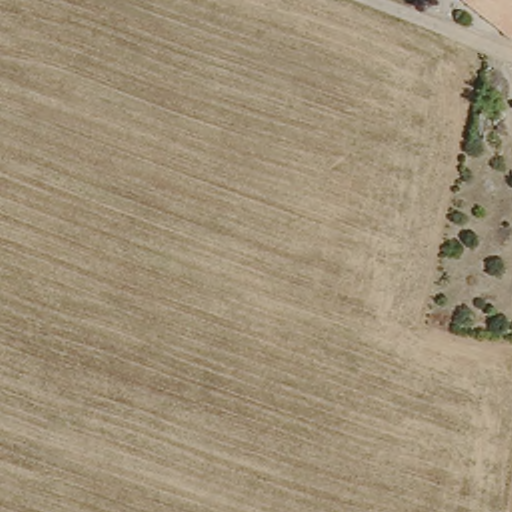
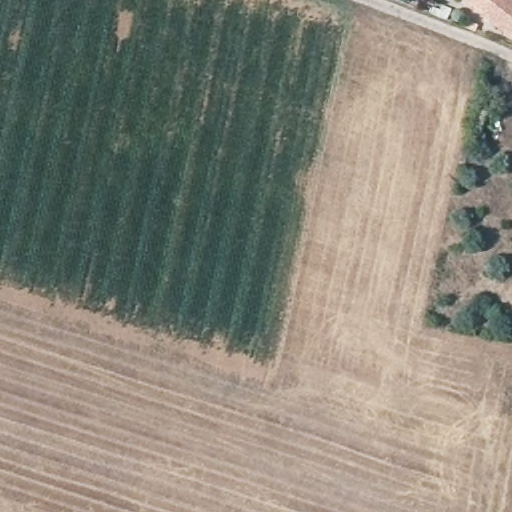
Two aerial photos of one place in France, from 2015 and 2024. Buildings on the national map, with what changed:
unchanged [(466,0),(512,0),(512,34),(511,36),(466,0)]

